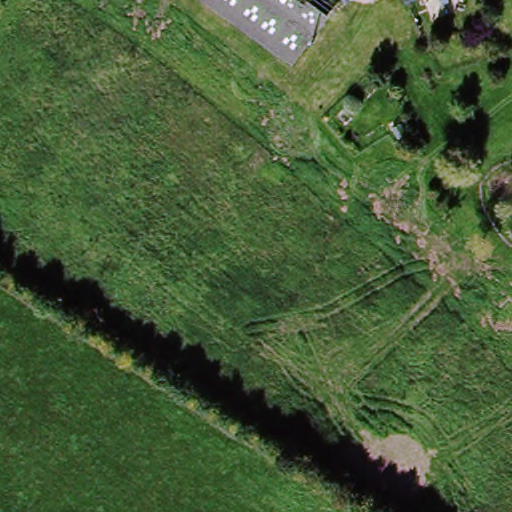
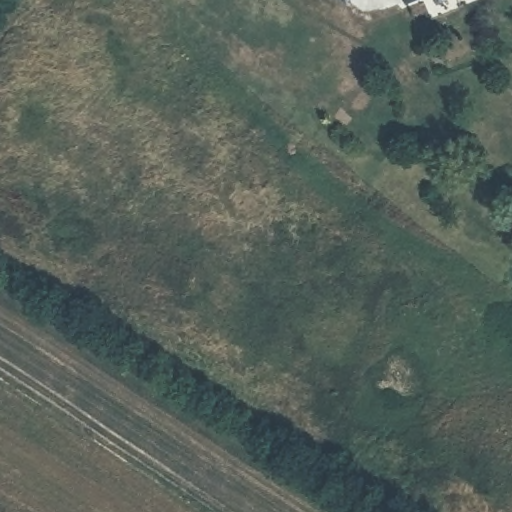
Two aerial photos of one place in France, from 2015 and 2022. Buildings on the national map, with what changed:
demolished [(293,69),(191,0),(332,0),(335,2),(293,69)]
unchanged [(332,0),(336,0),(335,2),(332,0)]

